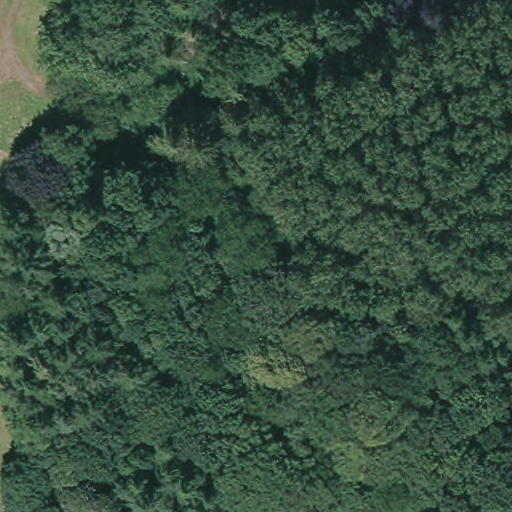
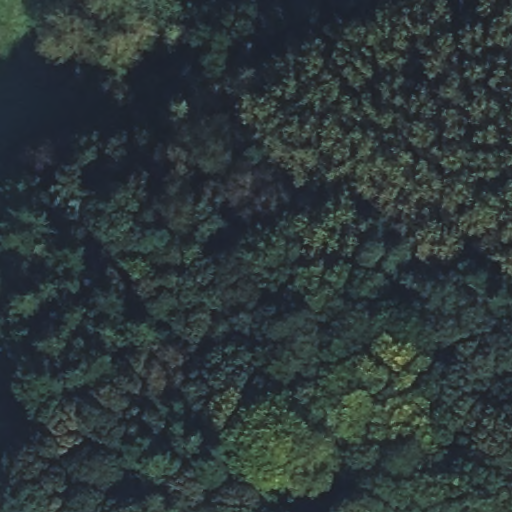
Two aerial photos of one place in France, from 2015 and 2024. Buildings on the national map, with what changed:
[]

